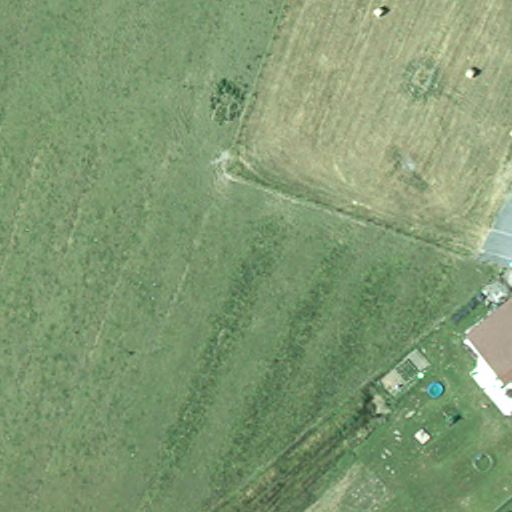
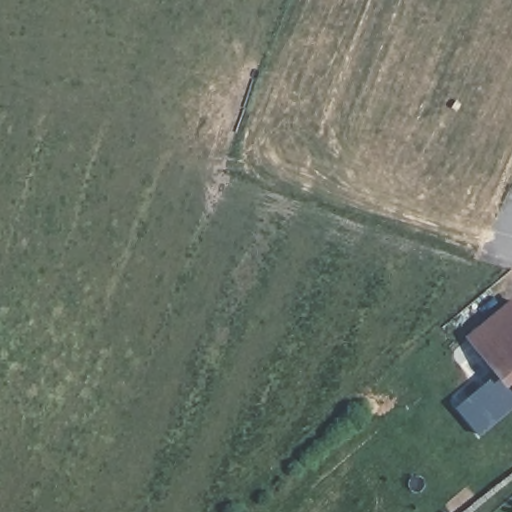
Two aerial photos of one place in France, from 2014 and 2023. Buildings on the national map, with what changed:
unchanged [(512,375),(510,373),(505,378),(470,337),(512,302),(512,375)]
new [(510,373),(512,375),(512,408),(480,436),(455,407),(499,371),(505,378),(510,373)]

